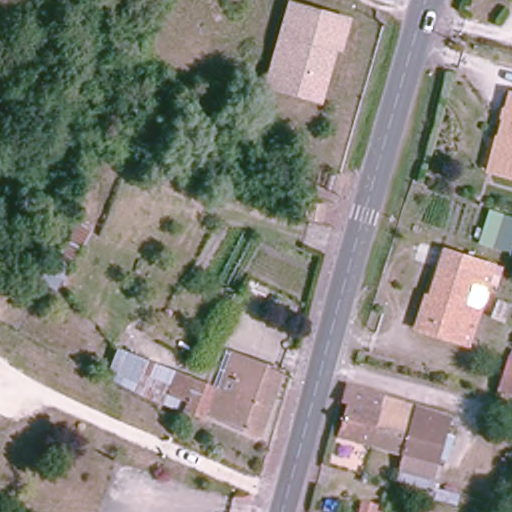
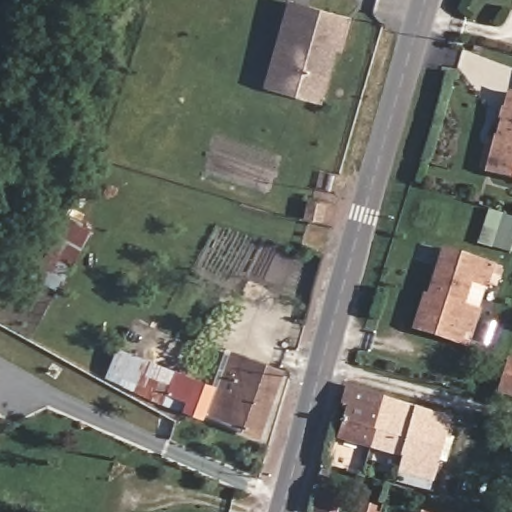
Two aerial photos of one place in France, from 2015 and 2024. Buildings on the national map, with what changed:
unchanged [(271,70),(283,29),(290,2),(346,18),(341,39),(337,50),(333,49),(322,87),(320,98),(278,86),(268,83),(271,70)]
unchanged [(499,134),(511,90),(512,90),(512,176),(500,172),(487,169),(496,134),(499,134)]
unchanged [(327,205),(320,224),(305,218),(310,202),(327,205)]
unchanged [(44,267),(76,208),(96,223),(64,278),(44,267)]
unchanged [(420,323),(441,251),(492,264),(486,284),(472,280),(463,309),(477,313),(467,348),(450,343),(417,334),(420,323)]
unchanged [(205,416),(200,429),(180,423),(182,410),(116,389),(126,359),(143,366),(145,360),(217,384),(231,349),(282,368),(258,436),(205,416)]
unchanged [(511,361),(512,361),(512,403),(501,400),(511,361)]
unchanged [(390,397),(375,446),(344,434),(352,404),(348,402),(351,392),(360,394),(361,387),(390,397)]
unchanged [(390,397),(451,416),(435,468),(375,446),(390,397)]
unchanged [(350,490),(386,495),(385,512),(347,512),(350,490)]

